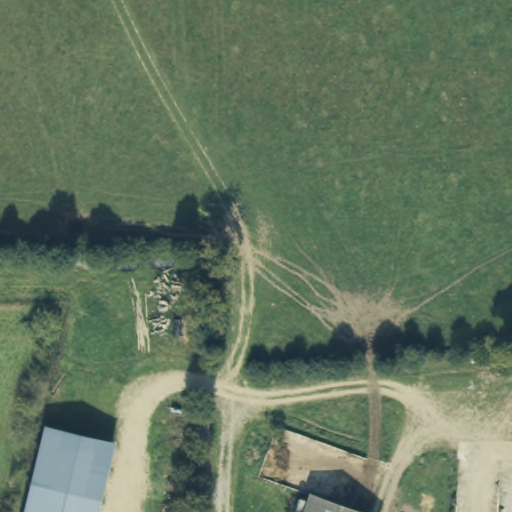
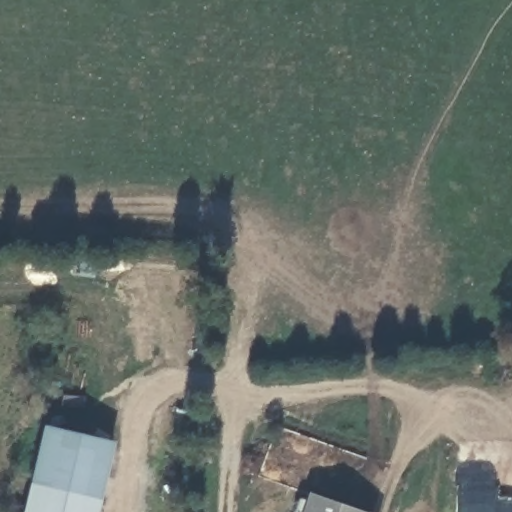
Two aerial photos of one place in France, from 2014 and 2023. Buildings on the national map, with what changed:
unchanged [(90,512),(19,512),(37,428),(105,443),(90,512)]
unchanged [(309,494),(359,512),(303,512),(309,494)]

